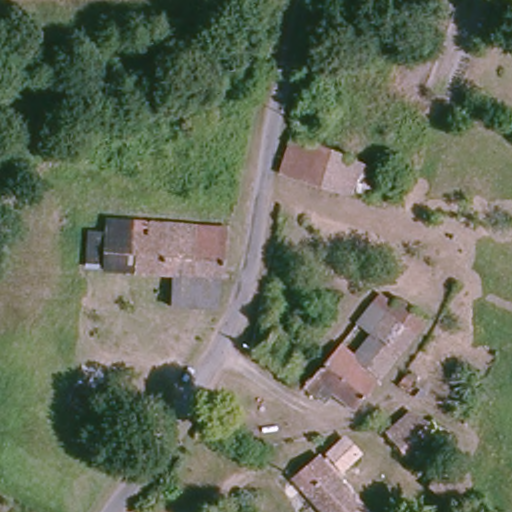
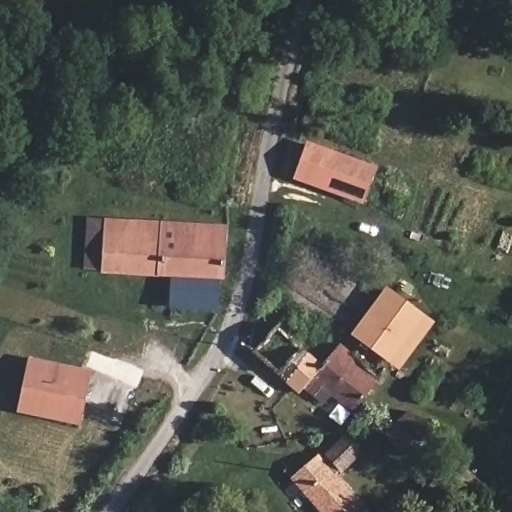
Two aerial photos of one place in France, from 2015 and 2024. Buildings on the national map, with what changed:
unchanged [(372,170),(375,172),(371,183),(379,187),(375,199),(284,167),(293,139),(372,170)]
unchanged [(223,312),(172,308),(173,277),(103,272),(103,265),(87,263),(89,231),(107,231),(109,216),(228,224),(223,312)]
unchanged [(304,386),(314,375),(333,352),(370,309),(382,296),(394,306),(402,299),(428,322),(355,411),(327,387),(316,398),(304,386)]
new [(17,411),(29,356),(93,370),(81,425),(17,411)]
unchanged [(385,425),(409,403),(426,414),(423,416),(431,426),(426,431),(434,442),(414,458),(385,425)]
unchanged [(364,459),(350,472),(332,451),(345,438),(364,459)]
unchanged [(369,510),(366,512),(321,512),(292,477),(322,452),(369,510)]
unchanged [(467,504),(460,512),(430,512),(424,506),(442,485),(467,504)]

